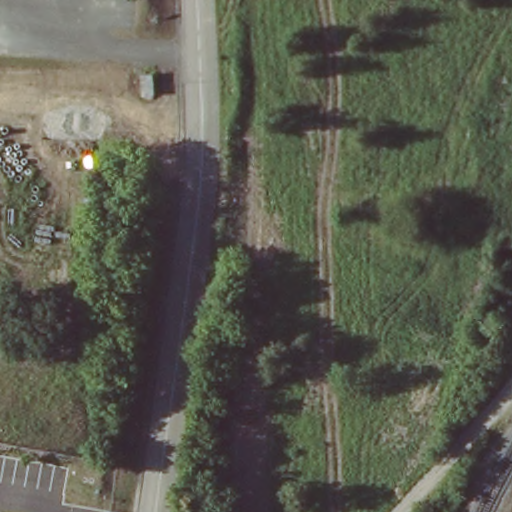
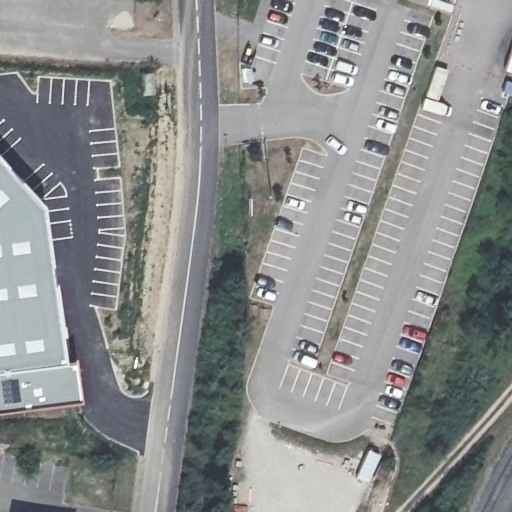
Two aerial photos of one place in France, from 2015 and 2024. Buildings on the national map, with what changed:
unchanged [(143,95),(142,75),(154,74),(155,95),(143,95)]
new [(53,286),(59,285),(66,328),(61,328),(64,360),(72,359),(78,400),(0,411),(0,158),(40,204),(53,286)]

